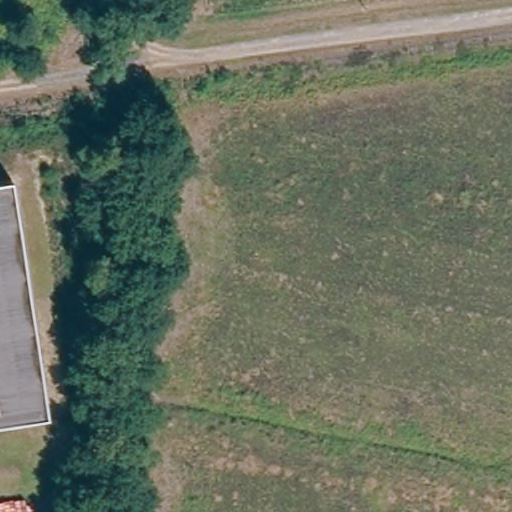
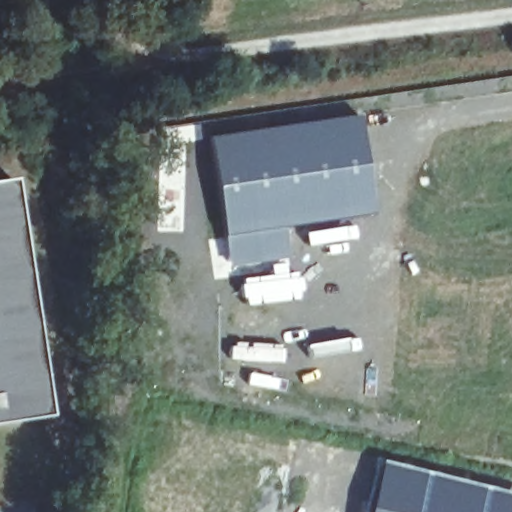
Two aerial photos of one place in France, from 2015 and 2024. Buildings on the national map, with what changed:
new [(358,115),(373,213),(282,227),(287,260),(229,268),(217,211),(209,136),(358,115)]
unchanged [(10,181),(46,417),(0,425),(0,182),(10,181)]
new [(298,273),(302,301),(245,307),(240,278),(298,273)]
new [(512,494),(512,512),(367,512),(380,458),(512,494)]

